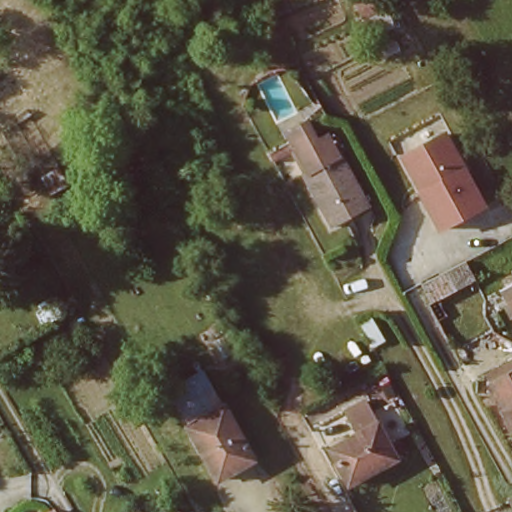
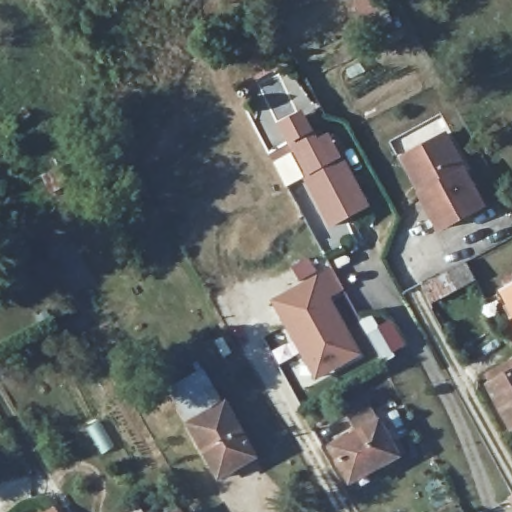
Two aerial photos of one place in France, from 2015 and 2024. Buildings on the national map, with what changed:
unchanged [(372,204),(333,224),(294,152),(332,131),(372,204)]
unchanged [(440,236),(392,157),(438,132),(480,209),(440,236)]
unchanged [(477,276),(432,299),(423,279),(462,259),(468,256),(477,276)]
new [(367,353),(317,382),(270,300),(320,272),(367,353)]
unchanged [(506,286),(512,283),(512,297),(506,286)]
unchanged [(489,374),(512,362),(512,424),(492,386),(495,384),(489,374)]
unchanged [(190,426),(227,405),(256,458),(218,479),(190,426)]
unchanged [(397,457),(350,483),(331,449),(379,422),(397,457)]
unchanged [(139,512),(124,512),(136,505),(139,512)]
new [(56,512),(47,512),(54,508),(56,512)]

